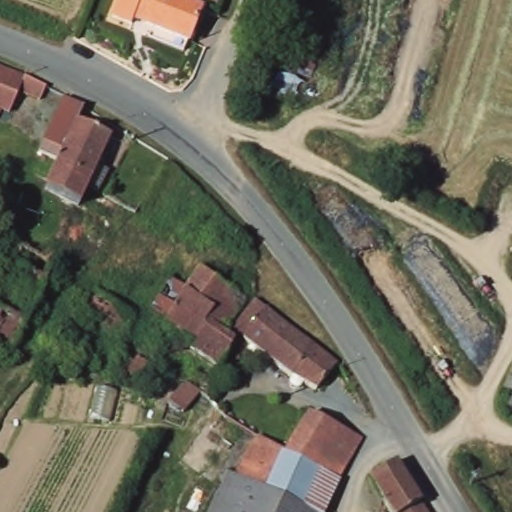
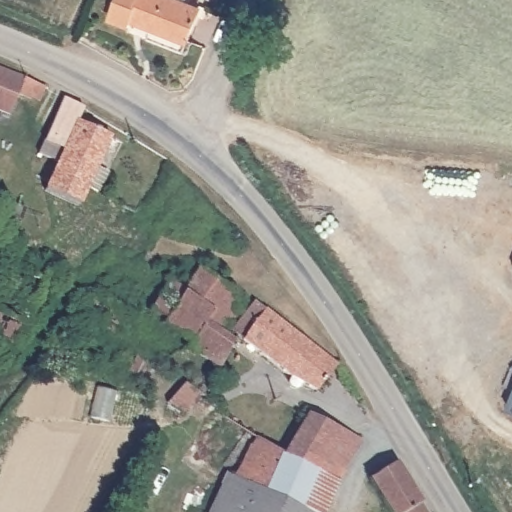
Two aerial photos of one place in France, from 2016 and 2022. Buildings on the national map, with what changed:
unchanged [(110,0),(177,0),(197,7),(185,37),(128,16),(126,22),(104,14),(110,0)]
unchanged [(43,100),(19,94),(10,112),(0,108),(0,67),(48,90),(43,100)]
unchanged [(61,96),(83,105),(76,121),(108,136),(76,204),(42,187),(54,158),(38,151),(61,96)]
unchanged [(253,305),(230,342),(244,351),(243,352),(241,355),(240,357),(237,361),(232,370),(231,371),(229,374),(197,354),(201,347),(175,329),(160,319),(179,290),(195,300),(209,278),(253,305)]
unchanged [(78,308),(77,307),(78,306),(80,303),(83,300),(91,292),(95,287),(129,314),(113,336),(78,308)]
unchanged [(347,367),(325,395),(248,343),(247,342),(245,341),(241,338),(242,336),(243,336),(245,332),(256,318),(259,312),(263,308),(271,314),(272,315),(276,317),(277,318),(347,367)]
unchanged [(82,390),(77,388),(76,387),(46,375),(46,374),(61,345),(96,361),(88,377),(82,390)]
unchanged [(118,380),(119,380),(120,378),(121,376),(131,360),(144,366),(146,362),(159,369),(144,393),(127,386),(123,393),(119,392),(118,389),(117,387),(116,386),(116,384),(118,381),(118,380)]
unchanged [(504,406),(512,388),(512,409),(504,406)]
unchanged [(180,412),(183,408),(184,406),(190,399),(193,395),(194,394),(195,393),(197,391),(198,392),(202,395),(203,395),(206,398),(207,398),(211,401),(214,403),(215,404),(199,424),(180,412)]
unchanged [(253,434),(283,450),(307,409),(360,436),(339,479),(323,512),(205,512),(224,472),(233,476),(253,434)]
unchanged [(366,476),(391,458),(394,461),(400,470),(427,512),(391,512),(383,500),(366,476)]

